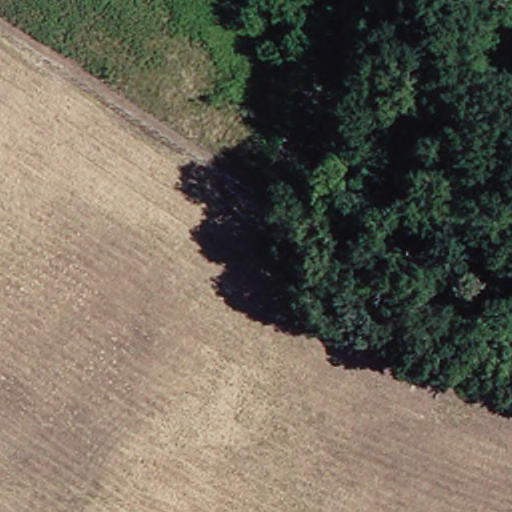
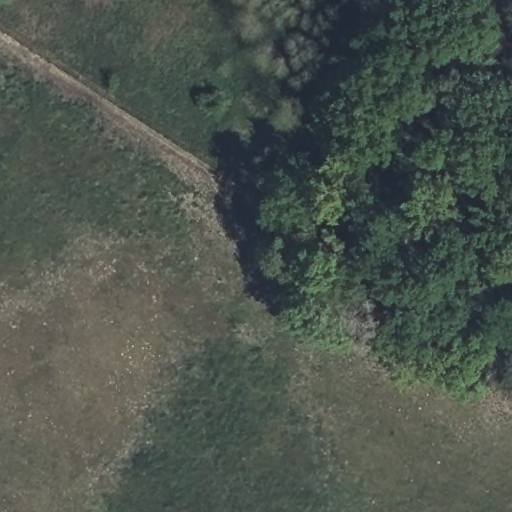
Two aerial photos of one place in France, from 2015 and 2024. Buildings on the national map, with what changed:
[]

